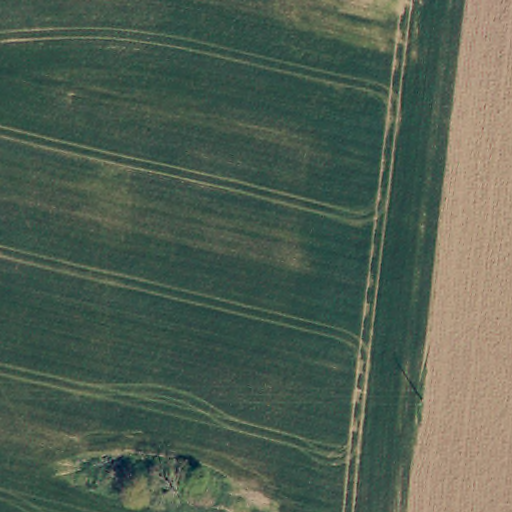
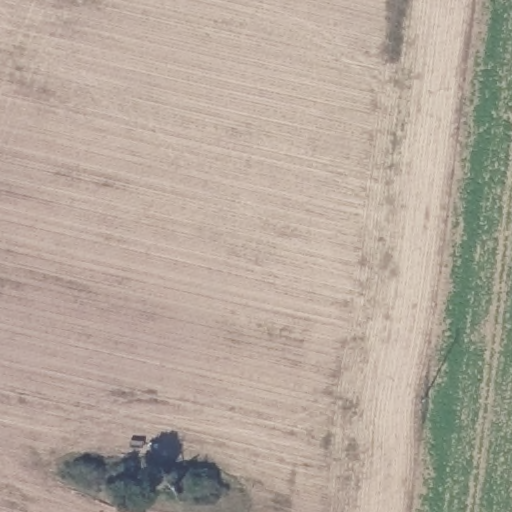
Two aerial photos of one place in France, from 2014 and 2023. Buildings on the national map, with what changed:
[]

